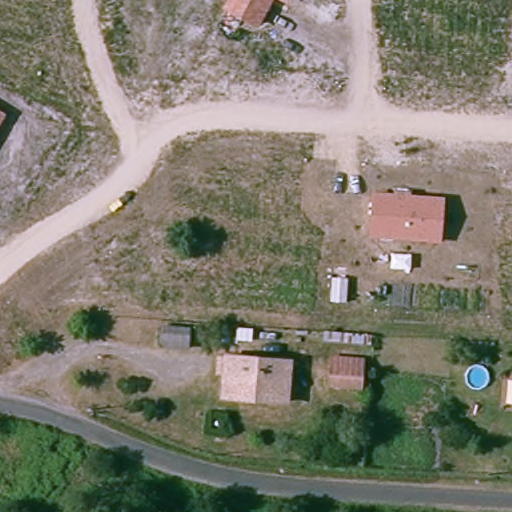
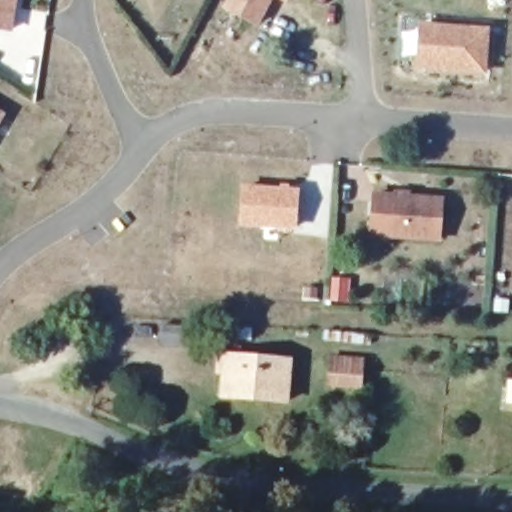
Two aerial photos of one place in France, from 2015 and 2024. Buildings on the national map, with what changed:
new [(0,29),(0,0),(17,0),(13,30),(0,29)]
unchanged [(274,0),(259,27),(222,6),(225,0),(274,0)]
unchanged [(279,0),(288,0),(286,4),(279,0)]
new [(490,27),(486,74),(416,69),(419,21),(490,27)]
unchanged [(5,114),(0,122),(0,111),(5,114)]
new [(241,183),(300,187),(296,229),(238,226),(241,183)]
unchanged [(445,197),(441,243),(370,236),(373,192),(445,197)]
new [(348,302),(326,301),(327,277),(350,279),(348,302)]
unchanged [(190,326),(189,348),(159,347),(160,324),(190,326)]
unchanged [(359,359),(356,392),(321,392),(324,356),(359,359)]
unchanged [(287,403),(218,400),(216,359),(285,363),(287,403)]
unchanged [(508,377),(512,378),(512,419),(506,419),(508,377)]

